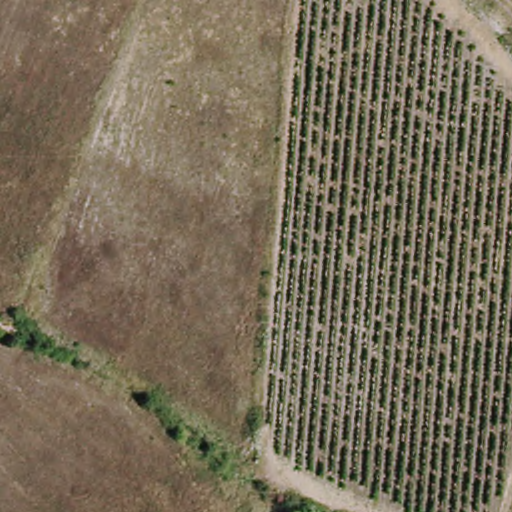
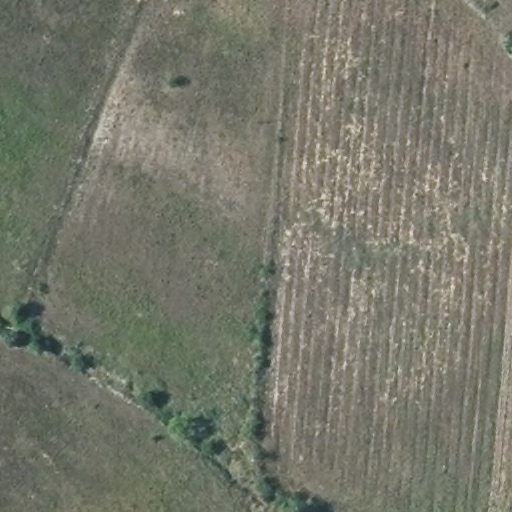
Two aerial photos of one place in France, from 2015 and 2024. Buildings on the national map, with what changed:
[]

